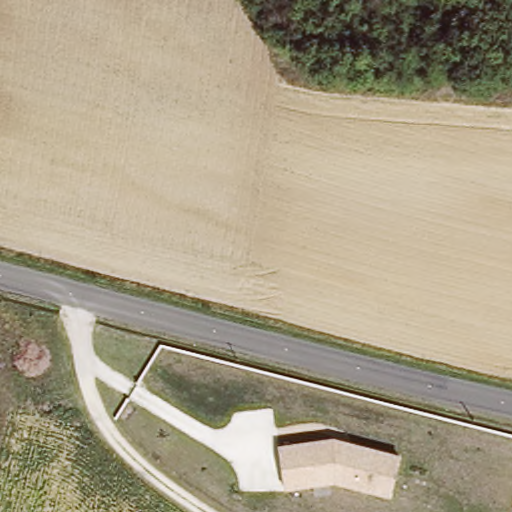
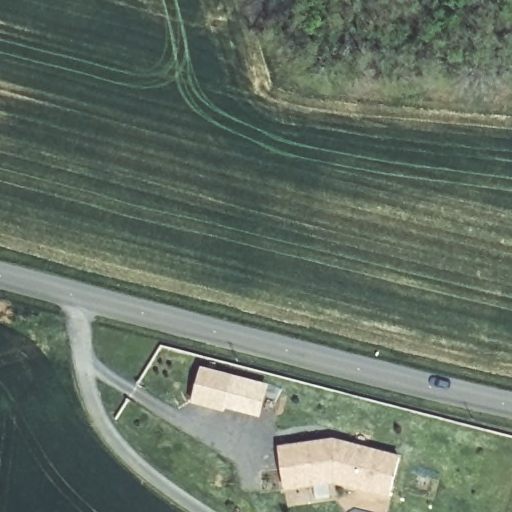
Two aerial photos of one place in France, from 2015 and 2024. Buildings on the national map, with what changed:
new [(200,365),(270,383),(261,418),(190,402),(200,365)]
unchanged [(280,446),(335,437),(402,453),(391,500),(337,485),(287,493),(280,446)]

